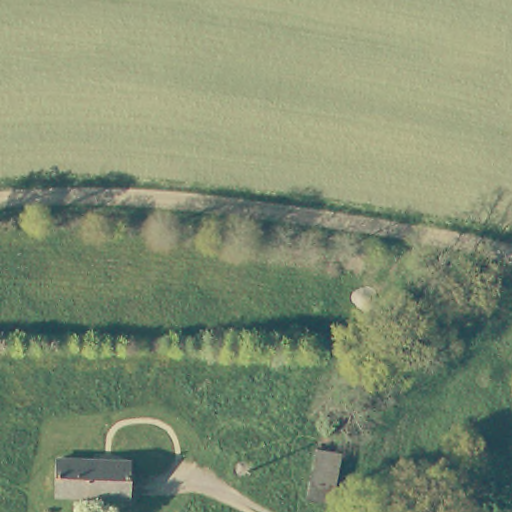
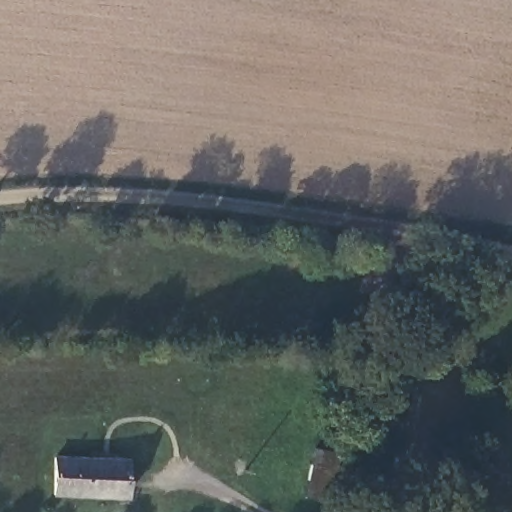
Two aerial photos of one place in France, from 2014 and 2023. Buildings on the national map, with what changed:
unchanged [(315,447),(339,453),(330,501),(306,497),(315,447)]
unchanged [(55,494),(56,457),(127,460),(127,496),(55,494)]

